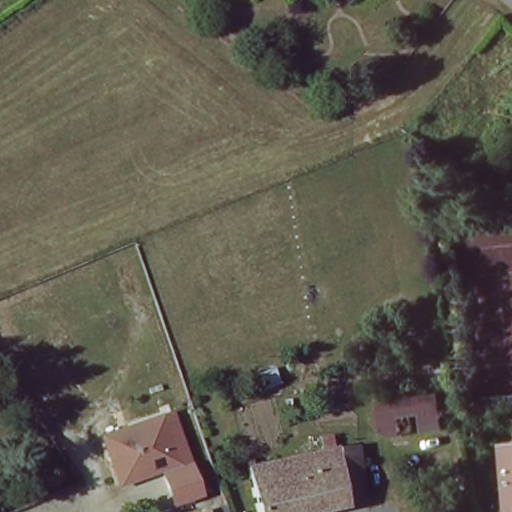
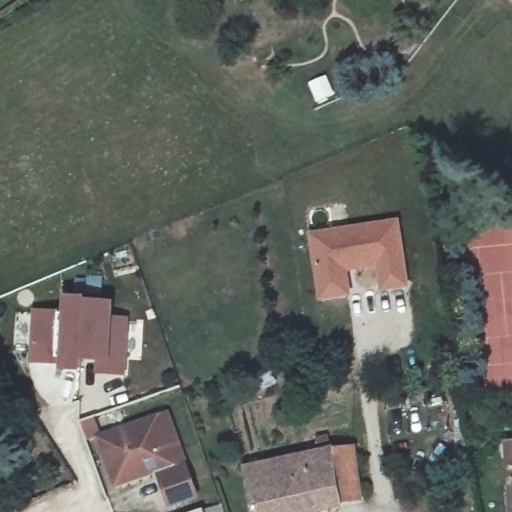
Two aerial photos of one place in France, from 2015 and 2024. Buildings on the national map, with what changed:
new [(322,299),(320,287),(314,246),(313,237),(329,234),(397,224),(407,287),(384,290),(379,266),(355,269),(345,271),(347,283),(349,295),(322,299)]
new [(64,309),(65,297),(86,297),(85,301),(116,302),(115,317),(131,318),(128,376),(96,373),(98,362),(84,362),(83,374),(58,372),(60,365),(29,362),(34,310),(64,309)]
new [(171,410),(200,497),(169,507),(156,467),(173,461),(157,415),(171,410)]
unchanged [(173,461),(117,482),(99,437),(157,415),(173,461)]
unchanged [(512,442),(512,512),(504,443),(512,442)]
unchanged [(331,451),(354,446),(364,498),(343,503),(331,451)]
unchanged [(305,512),(284,512),(278,486),(248,492),(242,471),(331,451),(343,503),(305,512)]
unchanged [(249,500),(248,492),(278,486),(284,512),(253,512),(249,500)]
unchanged [(198,509),(199,512),(189,512),(198,509)]

